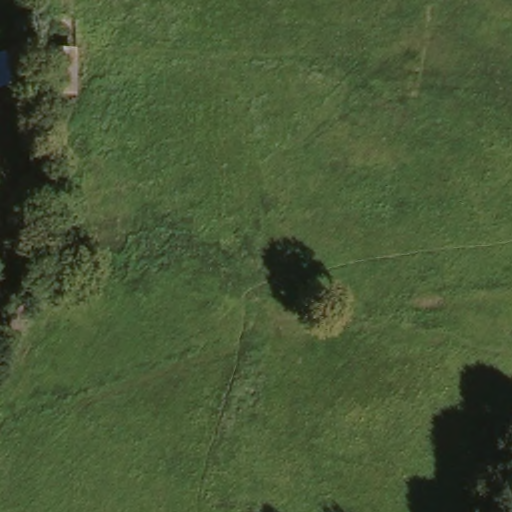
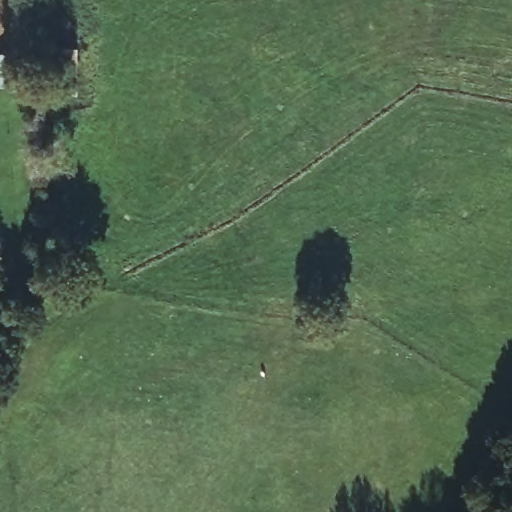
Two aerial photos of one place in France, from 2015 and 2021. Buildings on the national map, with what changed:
unchanged [(71,20),(71,95),(53,95),(53,19),(71,20)]
unchanged [(0,87),(0,54),(21,52),(25,84),(0,87)]

